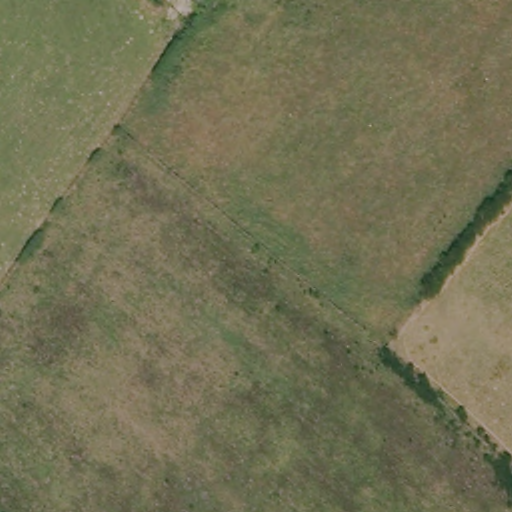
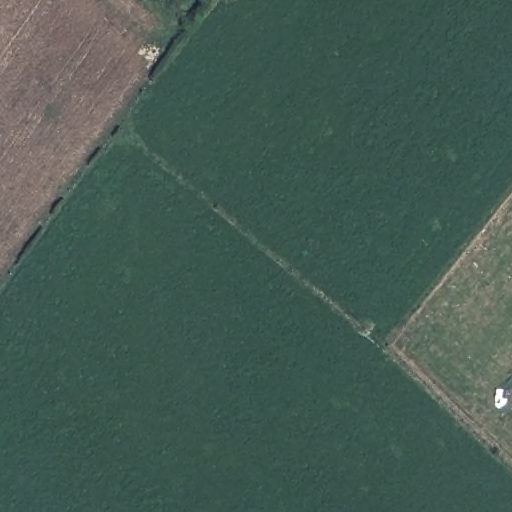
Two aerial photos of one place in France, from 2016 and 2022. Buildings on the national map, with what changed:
[]

